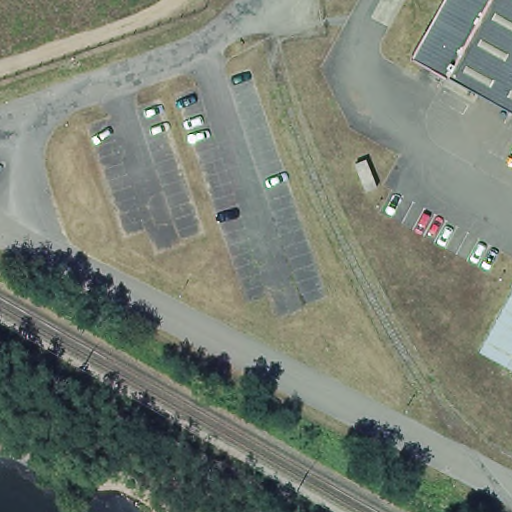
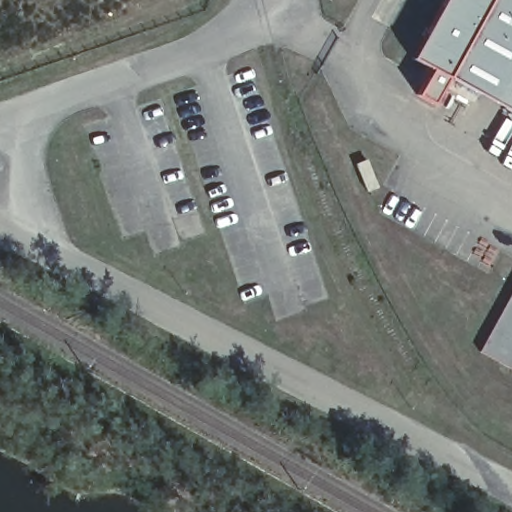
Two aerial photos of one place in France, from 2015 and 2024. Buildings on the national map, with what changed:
unchanged [(448,74),(413,54),(443,0),(490,0),(448,74)]
unchanged [(448,74),(490,0),(512,0),(512,110),(448,74)]
unchanged [(476,351),(512,288),(512,371),(476,351)]

